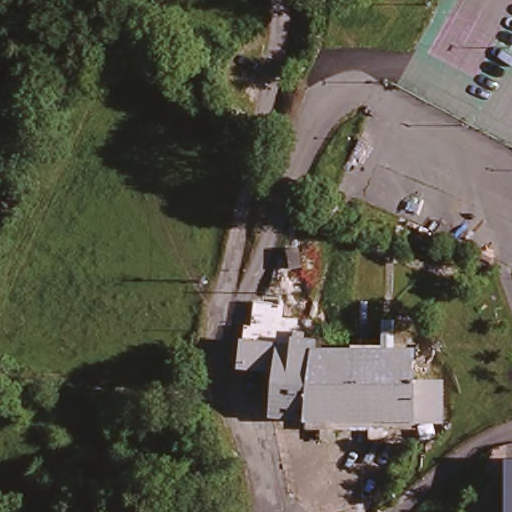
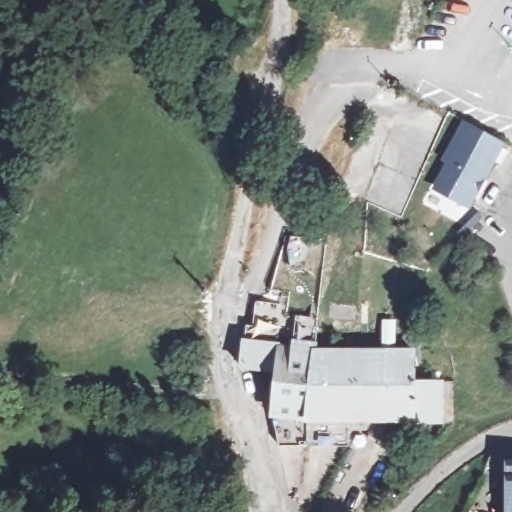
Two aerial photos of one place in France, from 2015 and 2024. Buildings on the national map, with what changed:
new [(434,190),(447,163),(442,160),(464,121),(505,144),(470,208),(434,190)]
unchanged [(275,265),(292,260),(297,278),(282,283),(275,265)]
unchanged [(250,336),(250,316),(271,315),(272,334),(304,332),(306,350),(414,342),(416,378),(445,377),(446,413),(411,415),(411,429),(301,437),(299,424),(278,424),(272,371),(246,373),(242,337),(250,336)]

